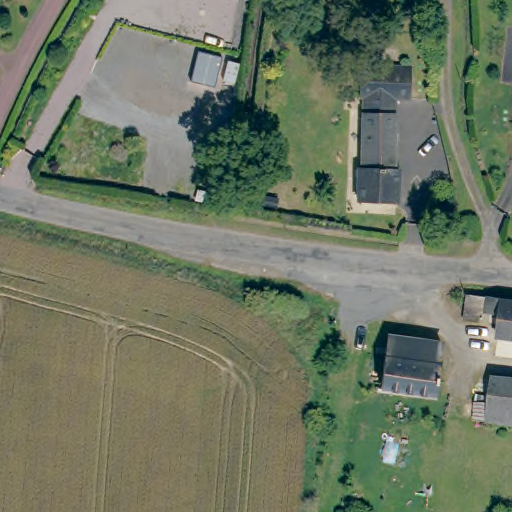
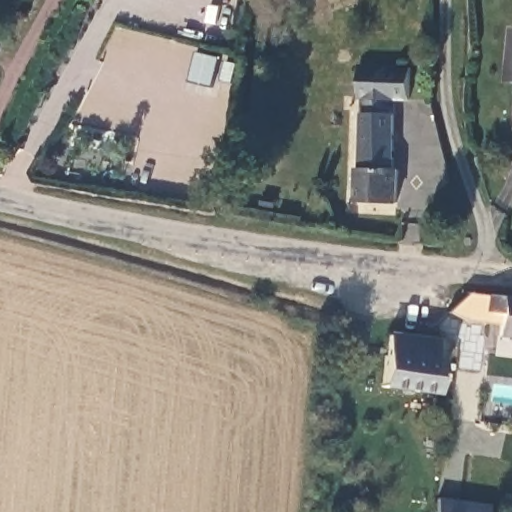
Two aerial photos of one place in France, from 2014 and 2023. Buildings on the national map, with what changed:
unchanged [(392,171),(397,171),(395,205),(357,202),(357,170),(361,170),(362,100),(355,99),(357,66),(395,66),(411,68),(409,101),(393,100),(392,142),(392,171)]
unchanged [(512,301),(512,338),(500,336),(503,315),(485,311),(482,323),(469,320),(472,295),(512,301)]
unchanged [(440,348),(435,398),(383,392),(388,342),(440,348)]
new [(489,512),(435,512),(437,499),(490,508),(489,512)]

